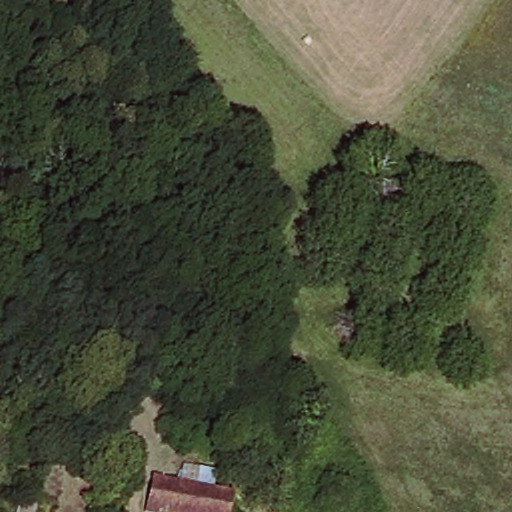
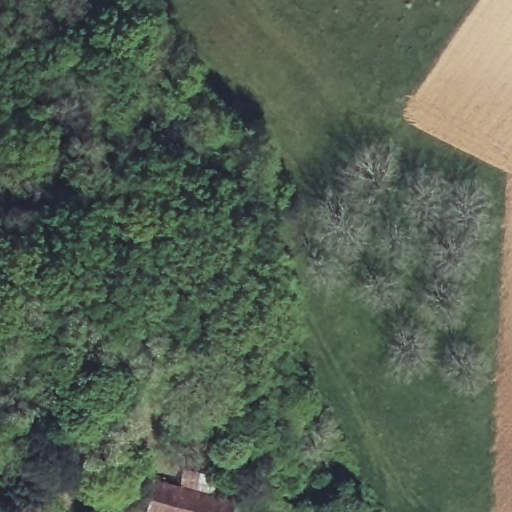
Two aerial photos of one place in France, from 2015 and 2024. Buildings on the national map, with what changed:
unchanged [(233,495),(229,512),(144,512),(155,474),(233,495)]

